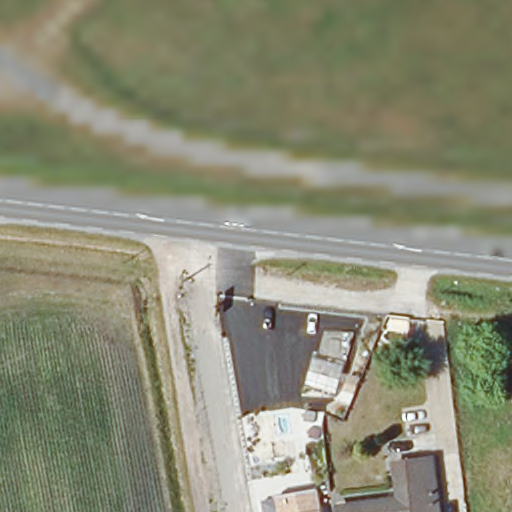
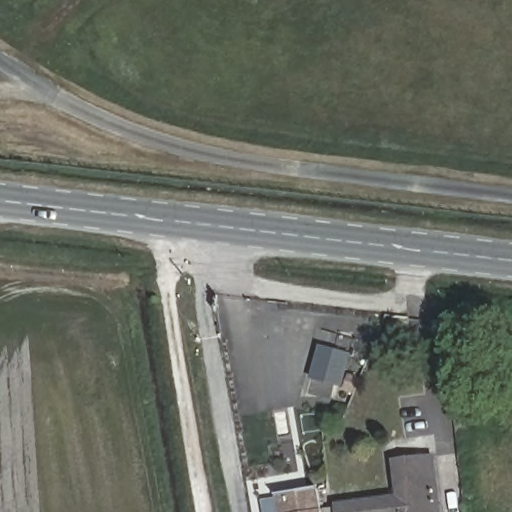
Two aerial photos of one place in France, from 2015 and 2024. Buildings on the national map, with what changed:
new [(347,374),(360,378),(355,394),(343,391),(344,387),(311,379),(320,344),(354,354),(347,374)]
unchanged [(444,512),(333,512),(331,503),(390,495),(387,461),(437,457),(444,512)]
unchanged [(278,494),(318,487),(318,491),(319,493),(322,512),(281,512),(278,494)]

